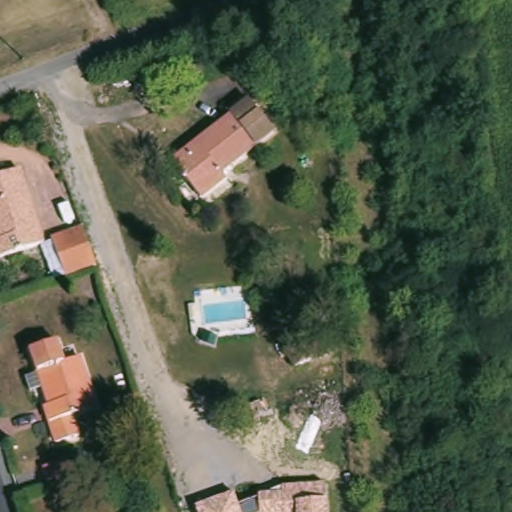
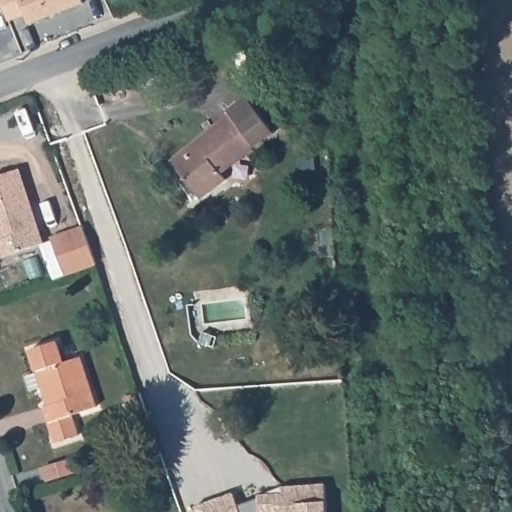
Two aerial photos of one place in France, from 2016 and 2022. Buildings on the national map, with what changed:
new [(30,24),(22,0),(82,0),(84,3),(30,24)]
unchanged [(272,130),(217,170),(222,179),(194,199),(167,158),(251,100),(272,130)]
unchanged [(42,245),(0,257),(0,188),(24,181),(42,245)]
unchanged [(47,236),(80,227),(91,266),(58,276),(47,236)]
unchanged [(57,340),(65,365),(86,358),(102,411),(74,420),(79,438),(57,443),(45,404),(51,402),(44,382),(27,388),(24,376),(41,371),(34,348),(57,340)]
unchanged [(322,377),(305,385),(293,357),(310,348),(322,377)]
unchanged [(140,413),(124,416),(119,400),(135,396),(140,413)]
unchanged [(84,475),(59,481),(54,466),(80,459),(84,475)]
unchanged [(238,505),(282,485),(326,481),(328,512),(196,512),(195,507),(235,491),(238,505)]

